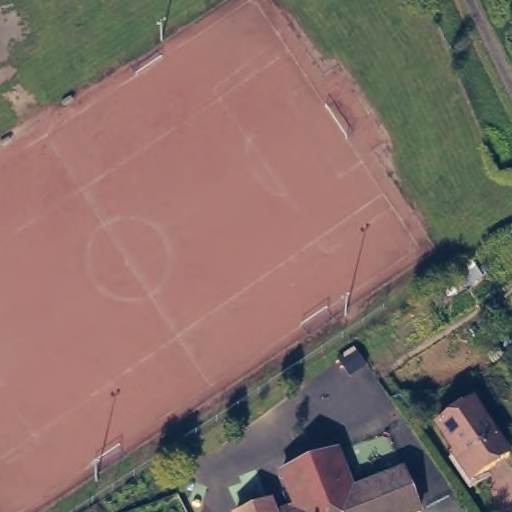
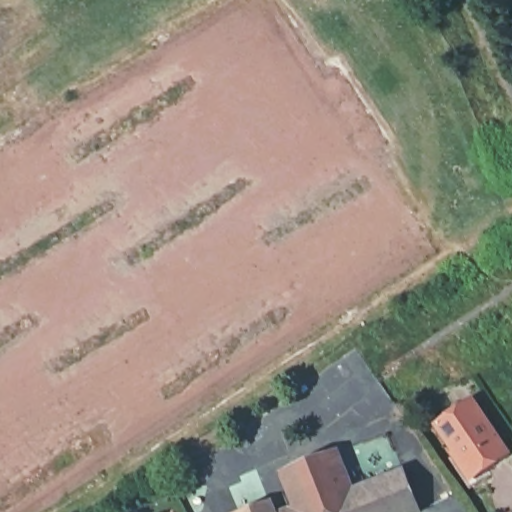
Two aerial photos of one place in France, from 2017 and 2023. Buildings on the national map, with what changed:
unchanged [(473,396),(510,450),(475,475),(438,420),(473,396)]
unchanged [(404,467),(420,508),(411,512),(237,512),(270,499),(275,510),(295,502),(282,470),(338,448),(352,485),(404,467)]

